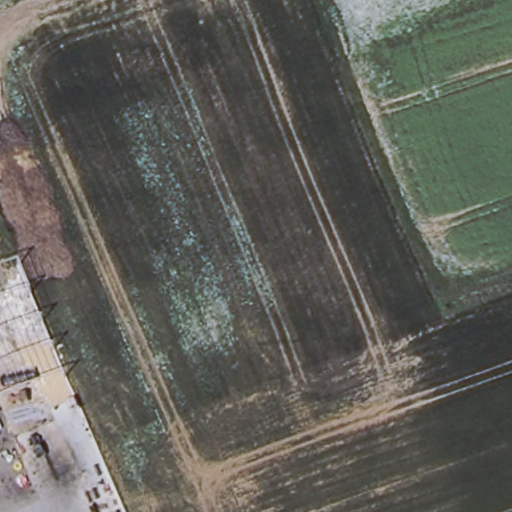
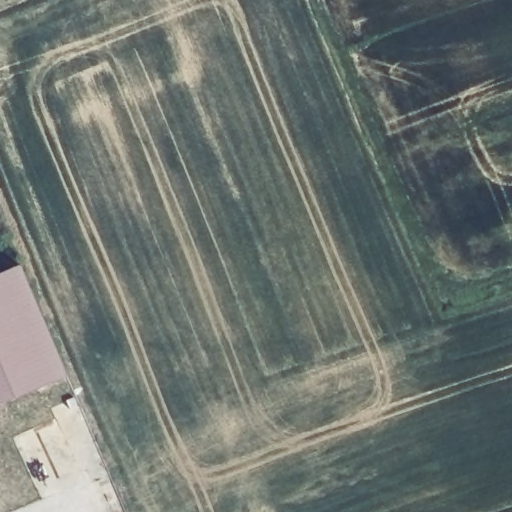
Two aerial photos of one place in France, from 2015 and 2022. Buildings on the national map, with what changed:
new [(66,376),(0,402),(0,273),(19,265),(66,376)]

